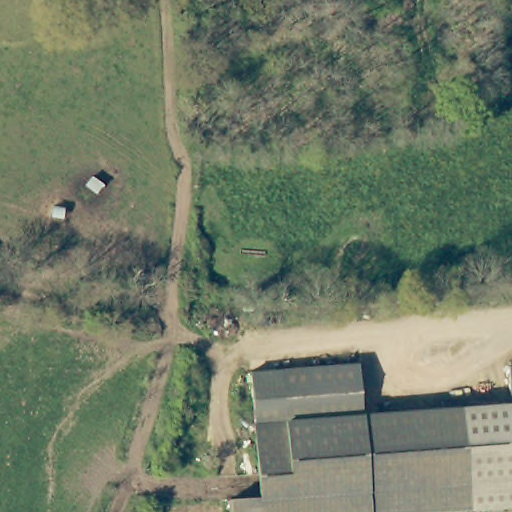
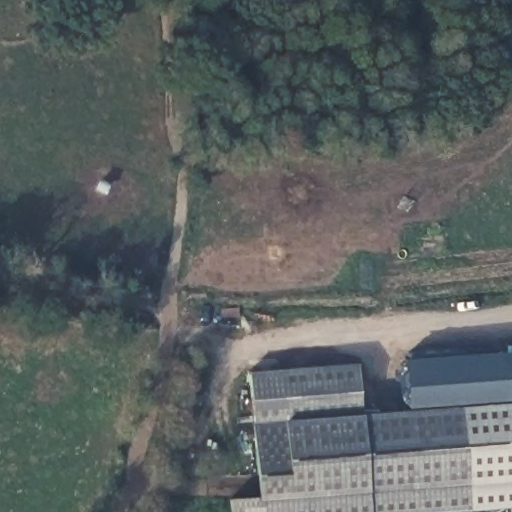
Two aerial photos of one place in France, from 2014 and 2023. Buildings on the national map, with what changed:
new [(507,350),(512,350),(512,402),(511,402),(459,406),(407,411),(403,359),(507,350)]
demolished [(512,394),(505,394),(502,363),(512,362),(512,394)]
unchanged [(229,498),(259,496),(250,373),(358,365),(362,415),(459,406),(466,509),(426,512),(230,512),(229,498)]
unchanged [(511,402),(512,408),(512,505),(466,509),(459,406),(511,402)]

